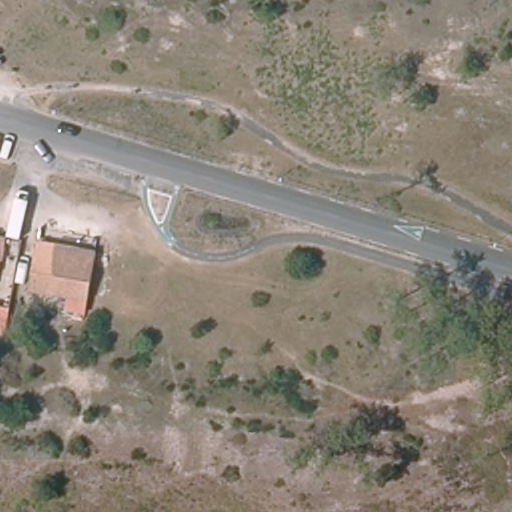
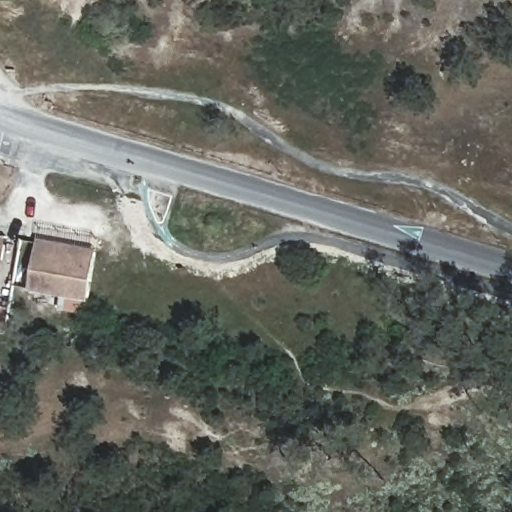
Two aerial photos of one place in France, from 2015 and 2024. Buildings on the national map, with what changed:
unchanged [(90,299),(29,287),(38,238),(97,246),(90,299)]
unchanged [(11,305),(7,333),(0,332),(0,303),(11,305)]

